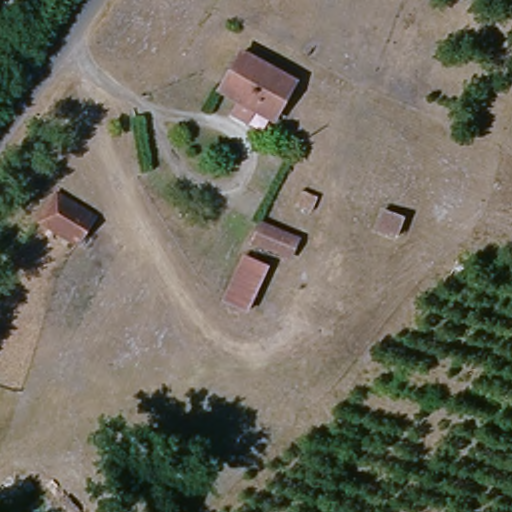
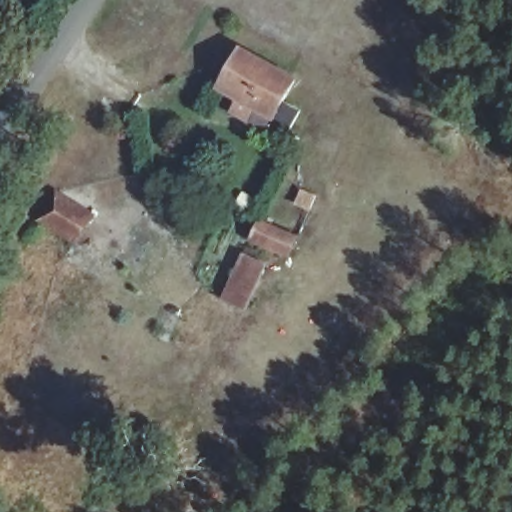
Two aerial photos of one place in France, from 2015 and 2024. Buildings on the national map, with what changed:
unchanged [(220,110),(231,91),(220,80),(247,43),(294,82),(267,119),(254,111),(244,127),(220,110)]
unchanged [(55,195),(94,219),(74,247),(42,229),(55,195)]
unchanged [(302,236),(292,261),(249,245),(257,220),(302,236)]
unchanged [(270,265),(246,313),(223,301),(244,256),(270,265)]

